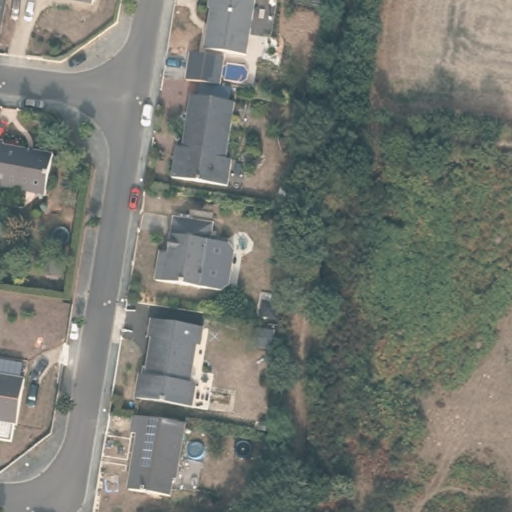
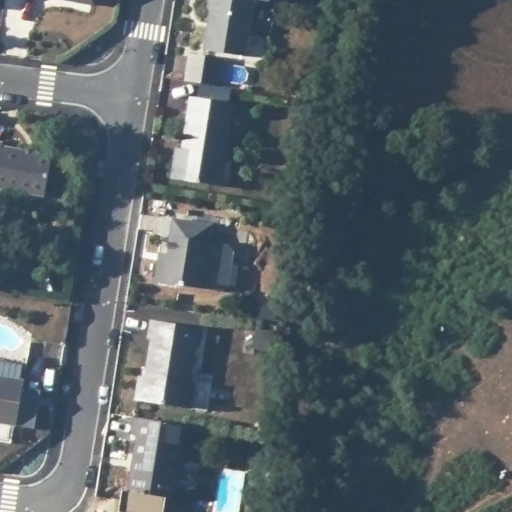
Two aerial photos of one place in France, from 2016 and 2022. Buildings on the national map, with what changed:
unchanged [(70,1),(67,0),(94,0),(92,5),(70,1)]
unchanged [(204,24),(208,0),(269,0),(266,16),(251,14),(242,71),(200,65),(206,25),(204,24)]
unchanged [(182,150),(191,97),(235,104),(226,160),(232,161),(228,188),(172,179),(175,156),(177,149),(182,150)]
unchanged [(5,143),(4,146),(54,156),(46,197),(0,188),(0,142),(5,143)]
unchanged [(168,255),(174,220),(213,226),(210,242),(203,289),(156,282),(159,262),(160,253),(168,255)]
unchanged [(221,292),(203,289),(210,242),(227,245),(234,253),(230,287),(221,292)]
unchanged [(140,377),(146,378),(152,340),(149,339),(152,321),(202,329),(200,347),(196,346),(190,385),(195,386),(192,409),(136,400),(140,377)]
unchanged [(25,381),(17,427),(0,424),(0,377),(25,381)]
unchanged [(132,474),(138,470),(139,465),(134,464),(138,436),(132,435),(135,418),(185,426),(176,482),(173,482),(170,499),(130,493),(132,474)]

